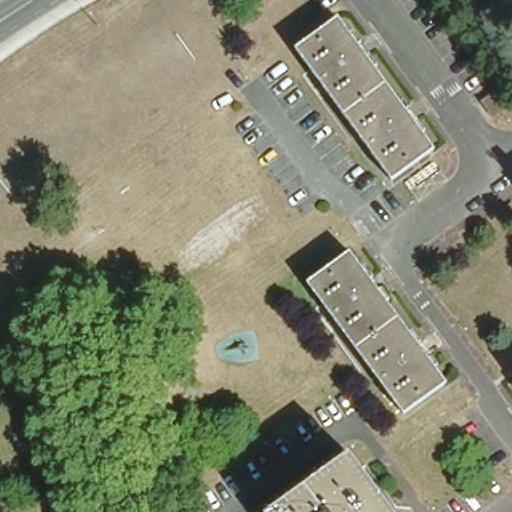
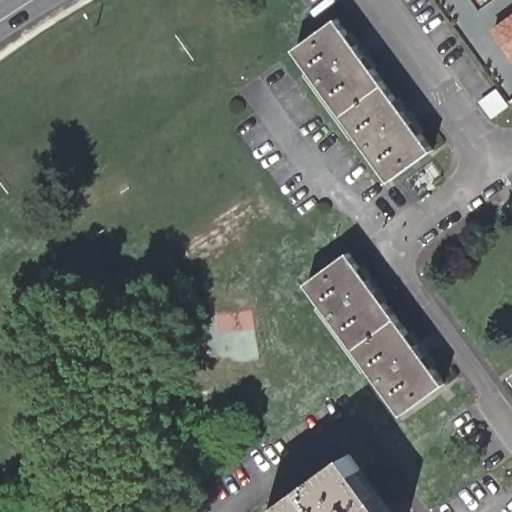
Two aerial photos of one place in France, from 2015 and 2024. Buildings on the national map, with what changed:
new [(512,15),(512,57),(492,30),(512,15)]
unchanged [(295,49),(339,18),(436,151),(392,182),(295,49)]
unchanged [(479,109),(496,97),(508,112),(491,125),(479,109)]
unchanged [(512,110),(510,107),(512,106),(512,110)]
unchanged [(398,419),(305,288),(346,258),(442,387),(398,419)]
unchanged [(350,453),(392,512),(270,512),(350,453)]

